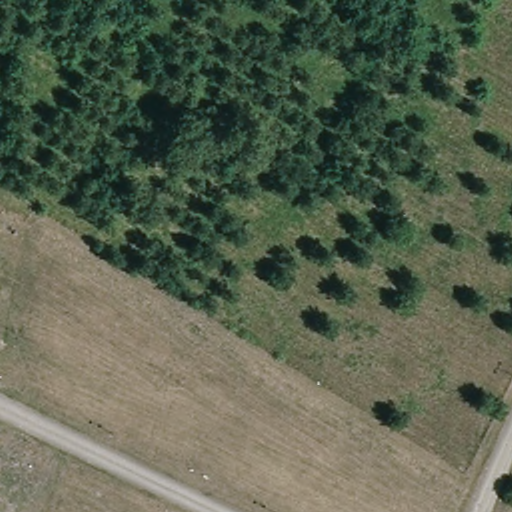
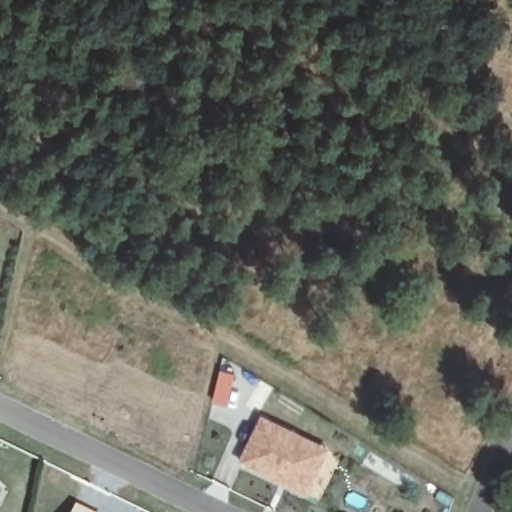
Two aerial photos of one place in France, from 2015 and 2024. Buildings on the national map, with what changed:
new [(238,464),(260,416),(331,449),(307,496),(238,464)]

